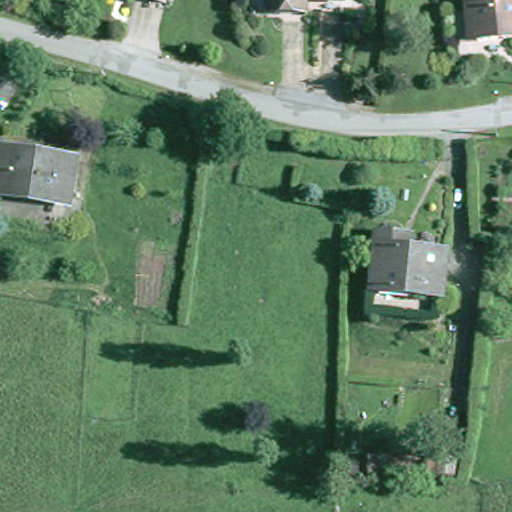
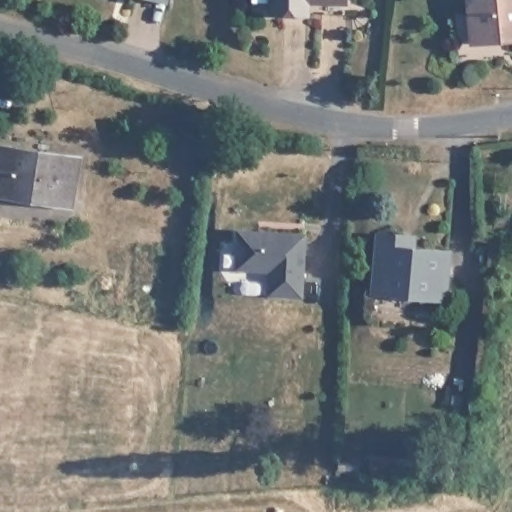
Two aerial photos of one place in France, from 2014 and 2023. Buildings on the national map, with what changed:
unchanged [(166,0),(165,4),(149,0),(166,0)]
unchanged [(270,15),(270,0),(342,0),(342,1),(305,0),(305,16),(290,15),(270,15)]
unchanged [(461,0),(512,0),(512,41),(485,43),(467,45),(465,26),(461,0)]
unchanged [(67,203),(0,194),(0,146),(76,156),(67,203)]
new [(236,269),(237,229),(306,232),(304,295),(267,293),(269,270),(236,269)]
unchanged [(440,295),(373,290),(378,232),(396,233),(409,234),(407,243),(445,246),(440,295)]
unchanged [(436,488),(457,489),(456,497),(435,495),(436,488)]

